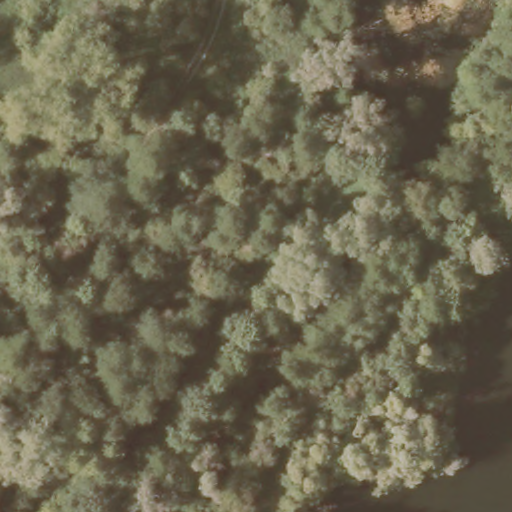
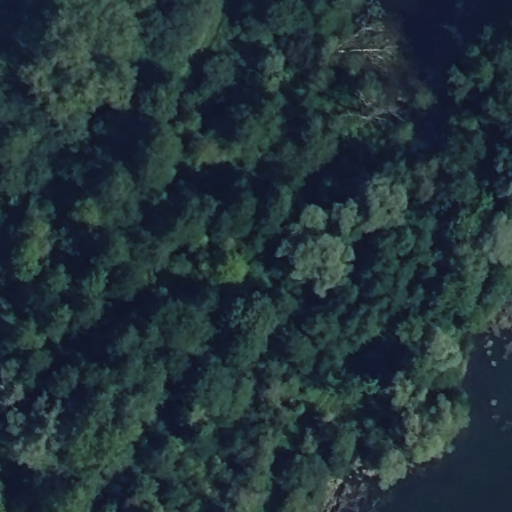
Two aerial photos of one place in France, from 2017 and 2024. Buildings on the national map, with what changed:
unchanged [(364,117),(374,104),(390,116),(380,133),(364,117)]
unchanged [(329,125),(343,130),(335,155),(322,152),(329,125)]

